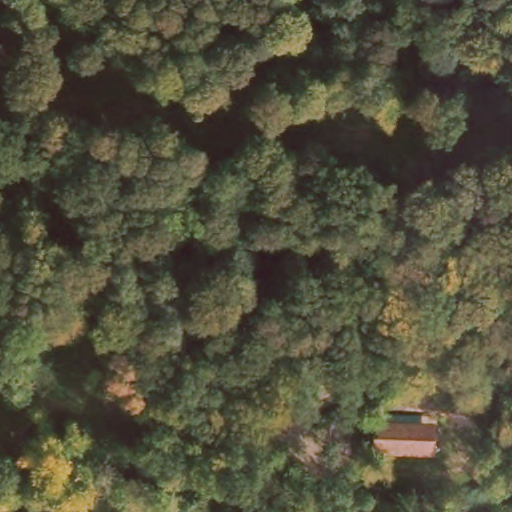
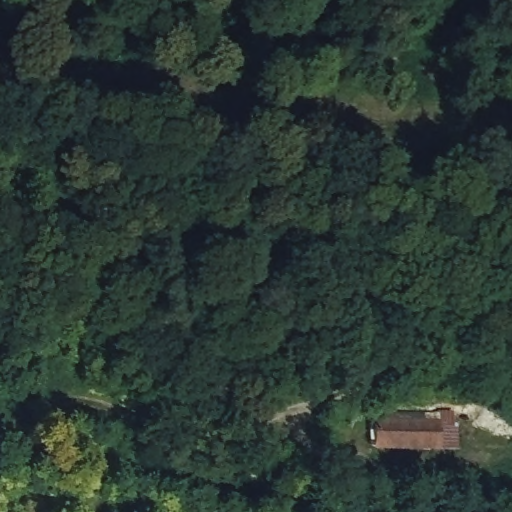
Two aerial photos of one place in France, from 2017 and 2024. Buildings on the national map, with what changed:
unchanged [(373,449),(372,414),(437,415),(436,452),(373,449)]

